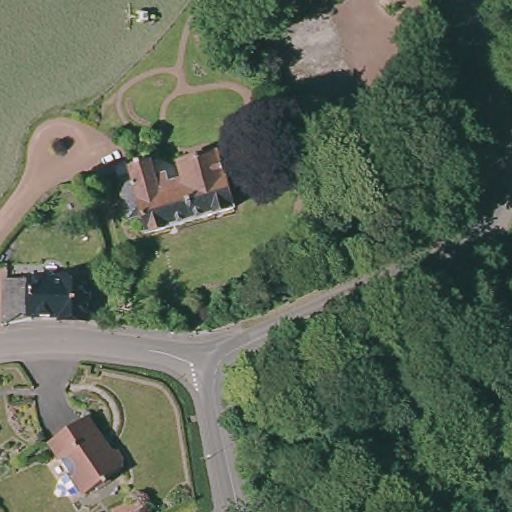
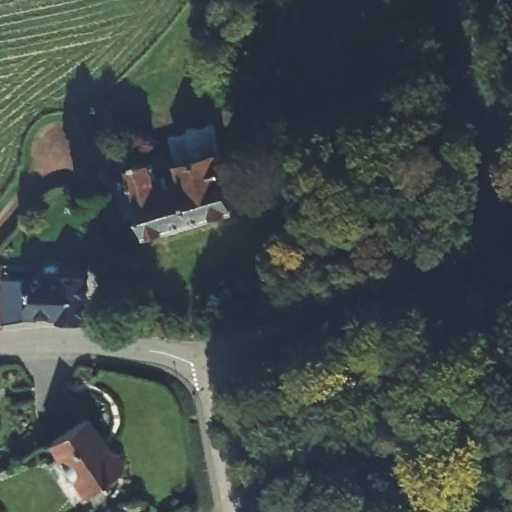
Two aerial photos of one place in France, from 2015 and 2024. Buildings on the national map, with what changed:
unchanged [(148,237),(144,220),(126,225),(115,188),(132,183),(129,172),(139,169),(150,166),(162,204),(170,202),(167,193),(180,189),(178,180),(182,179),(180,168),(217,158),(232,212),(148,237)]
unchanged [(33,284),(62,282),(61,280),(88,279),(91,321),(86,321),(66,323),(67,315),(37,316),(37,322),(13,324),(2,326),(0,285),(33,284)]
unchanged [(83,416),(106,449),(113,449),(120,459),(118,468),(107,476),(108,479),(102,484),(100,480),(82,493),(45,441),(83,416)]

